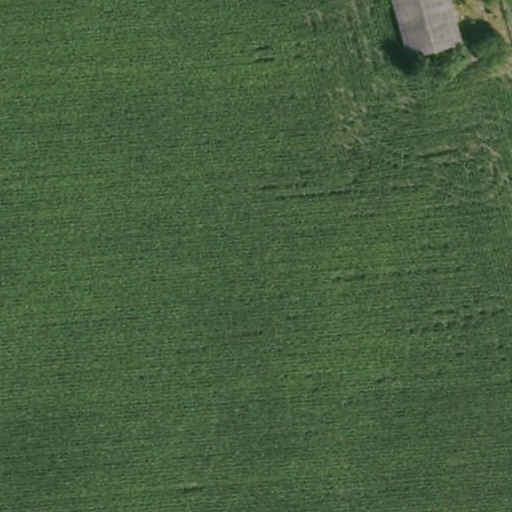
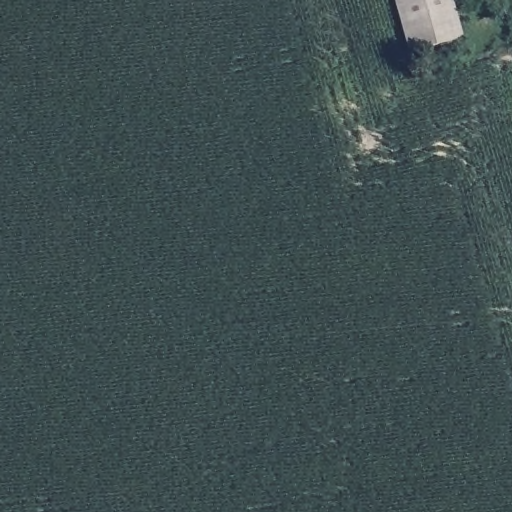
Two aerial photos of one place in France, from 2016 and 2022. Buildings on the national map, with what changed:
unchanged [(459,39),(410,51),(396,0),(447,0),(459,39)]

